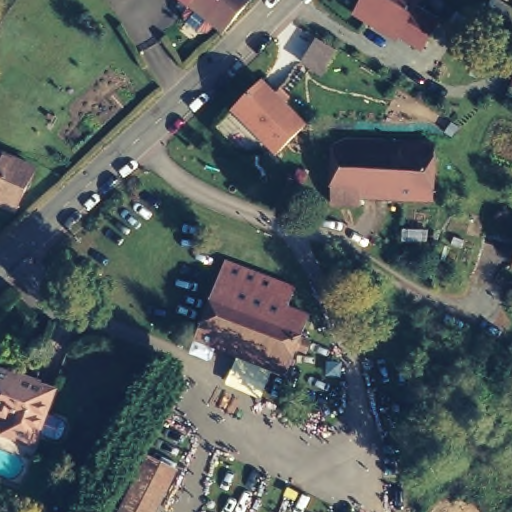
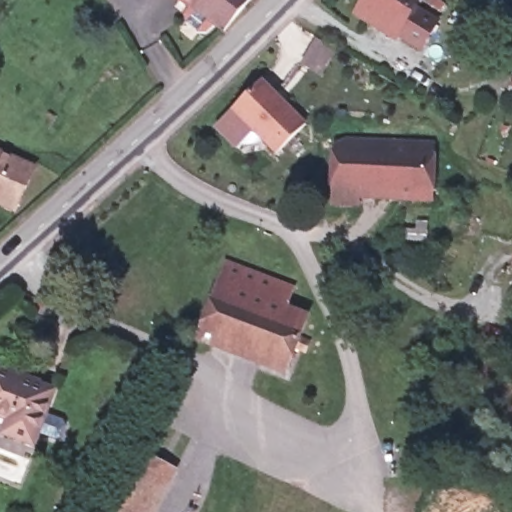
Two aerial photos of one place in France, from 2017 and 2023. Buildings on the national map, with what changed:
unchanged [(202,18),(181,0),(246,0),(221,31),(202,18)]
unchanged [(423,51),(399,36),(377,21),(355,6),(359,0),(444,0),(454,6),(423,51)]
unchanged [(276,158),(231,112),(266,78),(310,124),(276,158)]
unchanged [(432,191),(331,189),(334,140),(347,134),(435,135),(432,191)]
unchanged [(20,203),(0,194),(0,145),(37,161),(20,203)]
unchanged [(222,264),(286,291),(277,312),(213,284),(222,264)]
unchanged [(277,312),(289,317),(298,321),(291,341),(301,345),(296,355),(287,351),(277,374),(245,360),(249,347),(212,333),(207,345),(191,338),(213,284),(277,312)]
unchanged [(35,442),(5,432),(10,416),(0,412),(0,371),(52,390),(35,442)]
unchanged [(177,467),(154,512),(120,512),(152,453),(177,467)]

